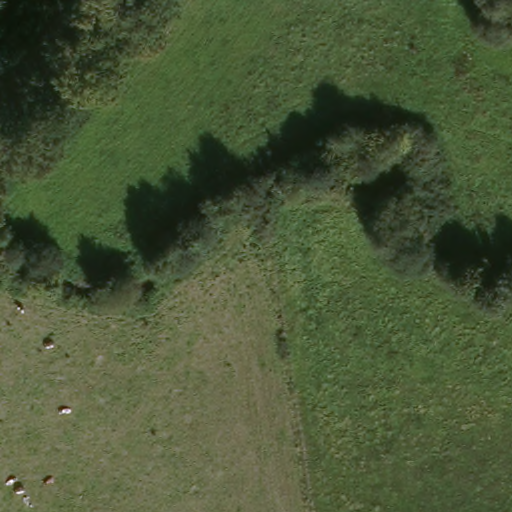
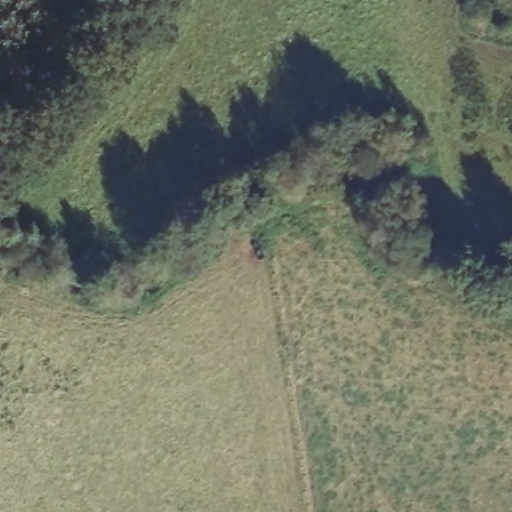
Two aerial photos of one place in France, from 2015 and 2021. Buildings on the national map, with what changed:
[]

